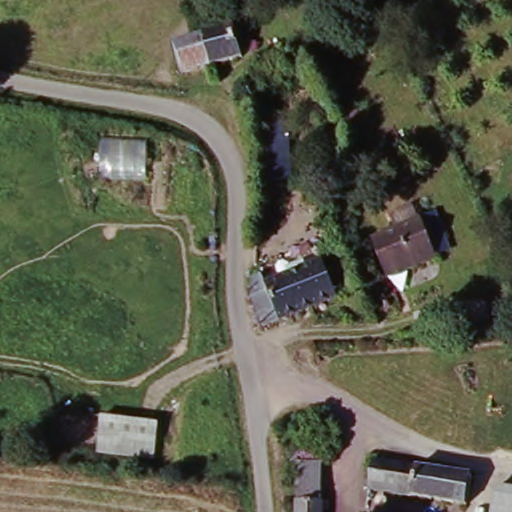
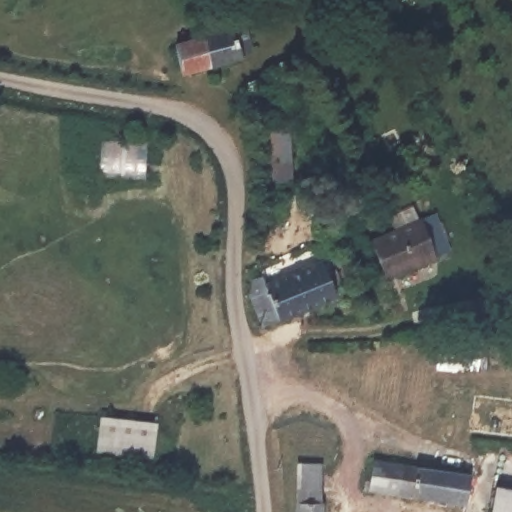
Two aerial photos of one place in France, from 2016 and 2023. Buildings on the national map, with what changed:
unchanged [(354,0),(373,0),(360,9),(354,0)]
unchanged [(265,22),(271,48),(254,51),(255,58),(209,67),(200,35),(246,26),(265,22)]
unchanged [(209,67),(173,73),(167,41),(200,35),(209,67)]
unchanged [(295,179),(268,182),(263,127),(290,124),(295,179)]
unchanged [(431,210),(447,250),(398,268),(383,229),(431,210)]
unchanged [(275,292),(269,277),(321,256),(338,297),(265,325),(256,298),(275,292)]
unchanged [(159,425),(156,460),(94,454),(97,418),(159,425)]
unchanged [(320,462),(319,512),(295,512),(296,462),(320,462)]
unchanged [(462,480),(458,512),(363,499),(366,467),(462,480)]
unchanged [(492,492),(512,495),(512,512),(489,512),(492,492)]

